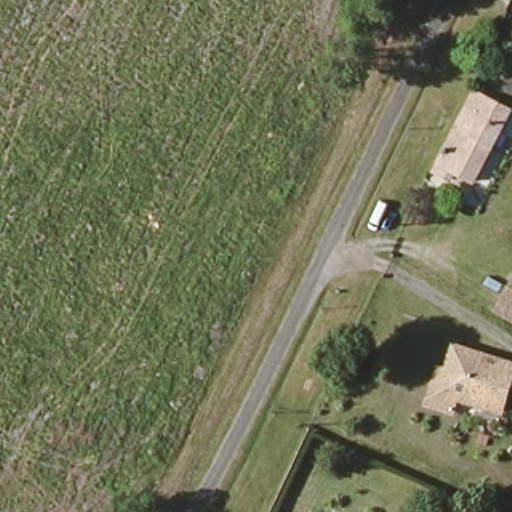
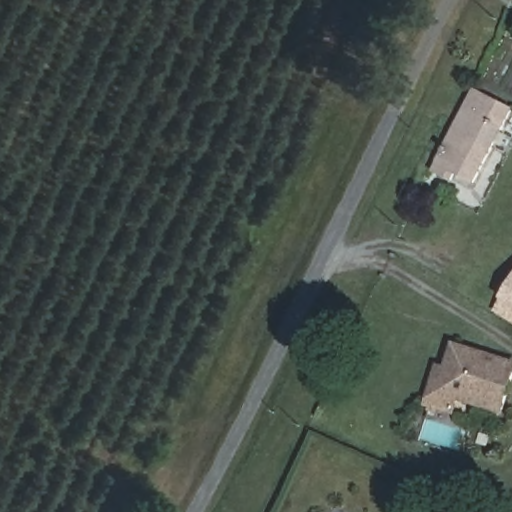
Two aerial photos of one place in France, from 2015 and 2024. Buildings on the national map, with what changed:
unchanged [(511,114),(480,184),(440,164),(471,95),(511,114)]
unchanged [(512,283),(512,325),(495,315),(512,283)]
unchanged [(512,359),(512,395),(508,408),(462,394),(458,409),(435,402),(442,377),(450,379),(452,371),(460,344),(512,359)]

